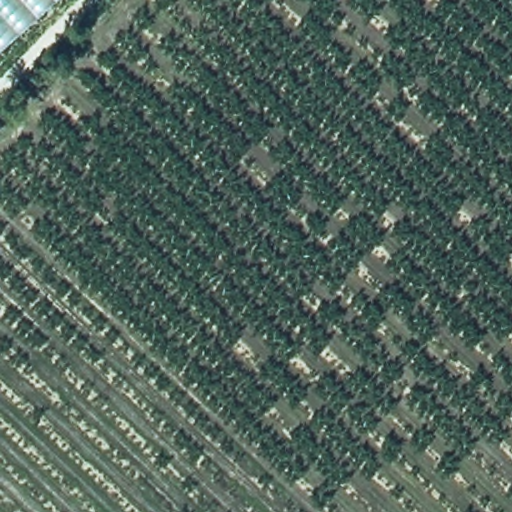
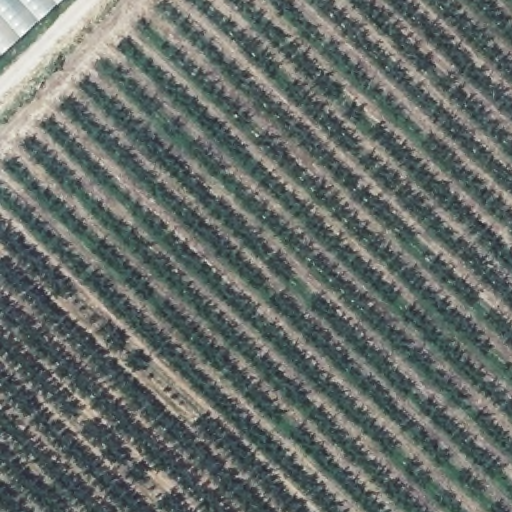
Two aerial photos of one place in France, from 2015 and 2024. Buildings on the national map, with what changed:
unchanged [(0,0),(44,0),(0,42),(0,0)]

